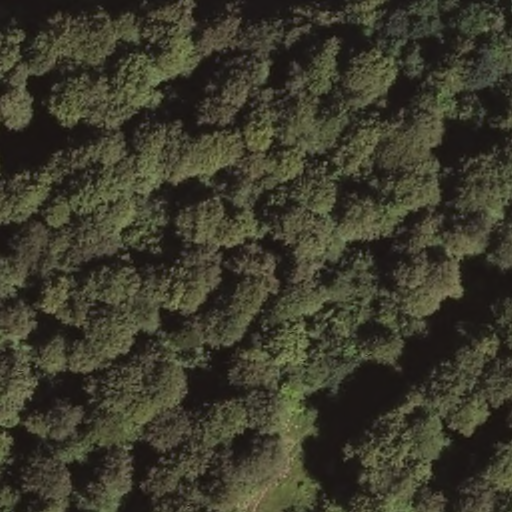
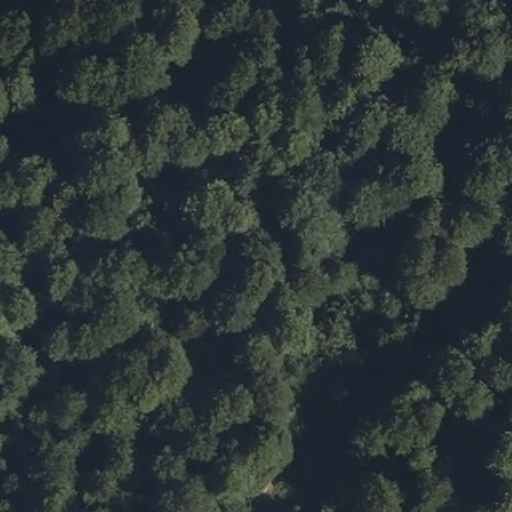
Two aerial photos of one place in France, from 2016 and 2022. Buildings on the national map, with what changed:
[]

